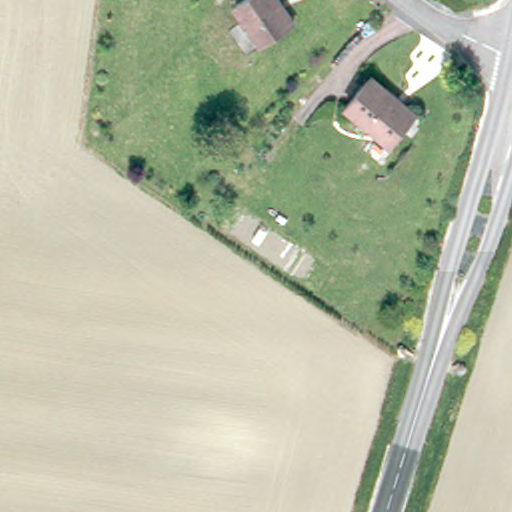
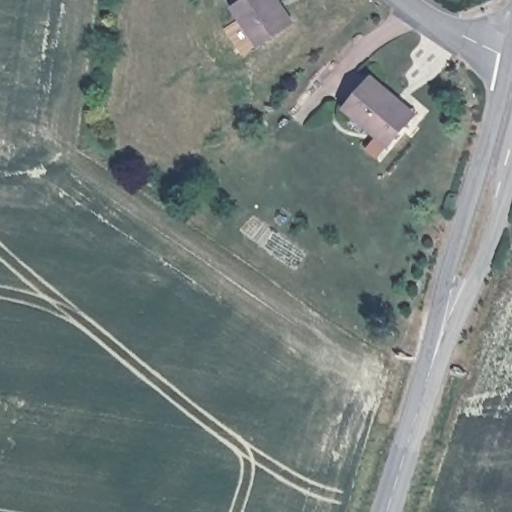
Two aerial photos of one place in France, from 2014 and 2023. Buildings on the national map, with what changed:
unchanged [(298,21),(264,43),(239,5),(246,0),(284,0),(298,21)]
unchanged [(414,116),(392,144),(345,108),(369,78),(414,116)]

